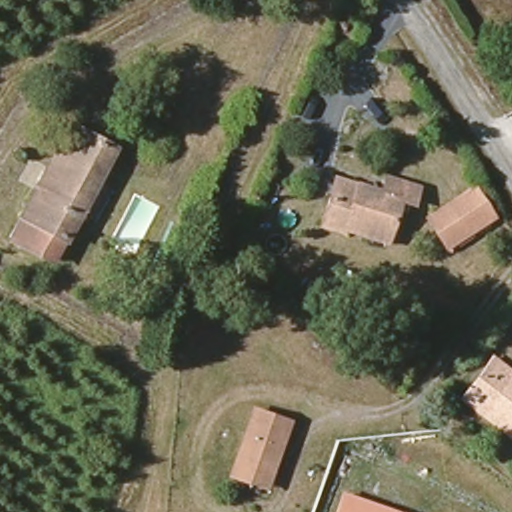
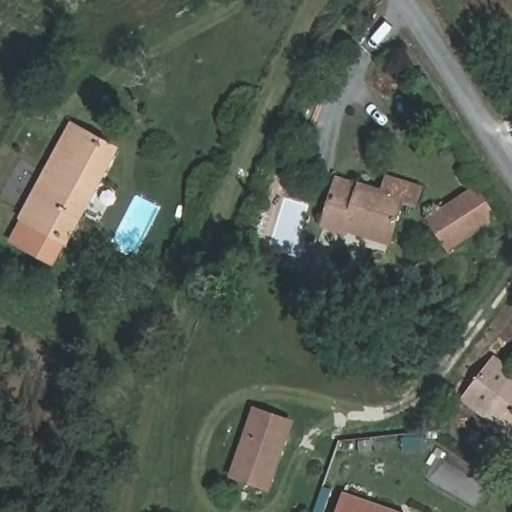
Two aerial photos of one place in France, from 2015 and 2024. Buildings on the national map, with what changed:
unchanged [(70,242),(69,242),(56,264),(15,241),(27,219),(25,217),(75,125),(120,150),(70,242)]
unchanged [(351,233),(351,234),(325,226),(326,222),(340,177),(385,191),(390,179),(422,189),(417,205),(405,201),(392,240),(390,246),(351,233)]
unchanged [(492,219),(445,250),(426,219),(473,189),(492,219)]
unchanged [(485,420),(460,401),(491,361),(512,377),(512,442),(485,420)]
unchanged [(234,476),(237,467),(257,410),(293,422),(273,481),(270,490),(234,476)]
unchanged [(387,512),(342,512),(346,497),(387,512)]

